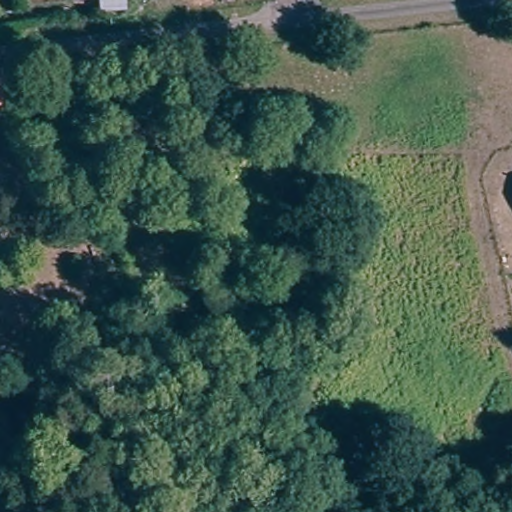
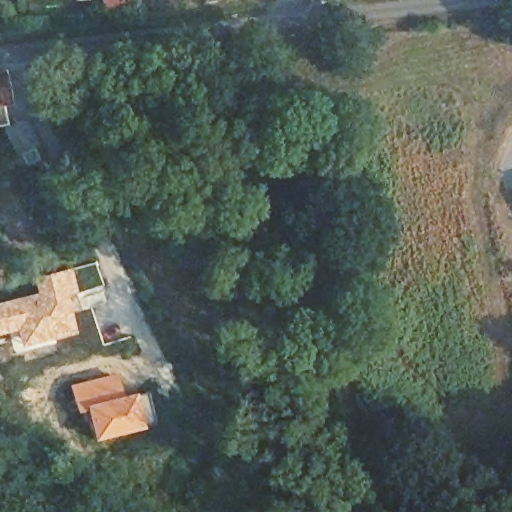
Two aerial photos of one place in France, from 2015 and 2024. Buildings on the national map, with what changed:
unchanged [(1,73),(6,101),(0,102),(0,73),(1,73)]
new [(33,292),(30,278),(70,268),(82,309),(71,313),(77,335),(18,351),(13,334),(0,337),(0,301),(33,292)]
new [(119,373),(123,394),(143,390),(150,416),(145,418),(147,428),(92,442),(84,412),(75,414),(68,385),(119,373)]

